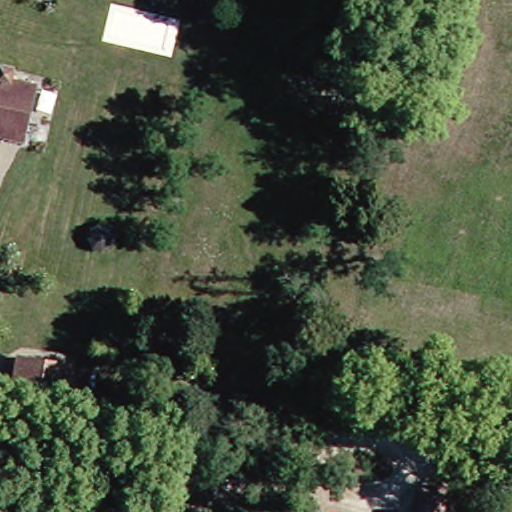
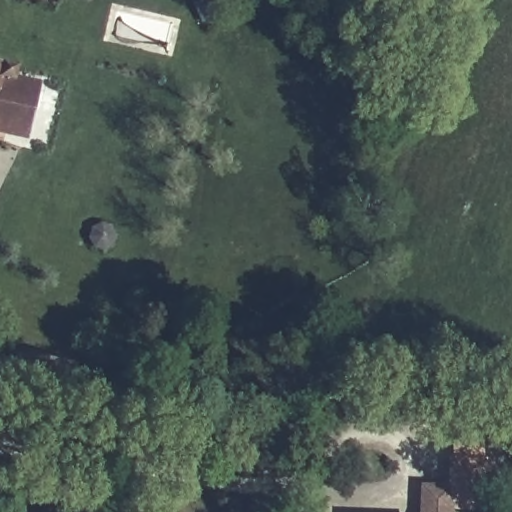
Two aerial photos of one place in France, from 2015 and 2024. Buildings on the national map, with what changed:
unchanged [(12,82),(36,89),(21,141),(0,136),(0,66),(15,70),(12,82)]
unchanged [(61,388),(9,377),(15,347),(67,358),(61,388)]
unchanged [(420,487),(447,488),(447,512),(419,512),(420,487)]

